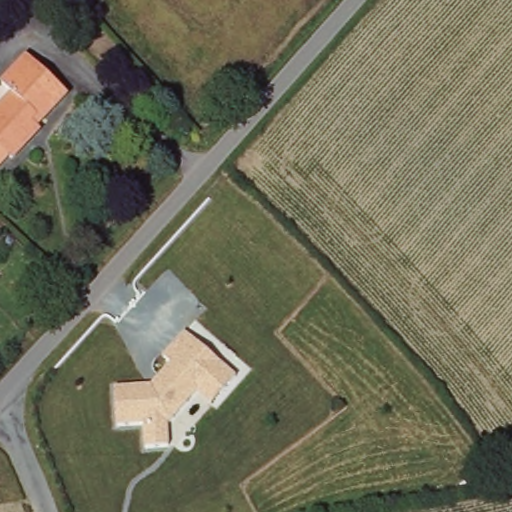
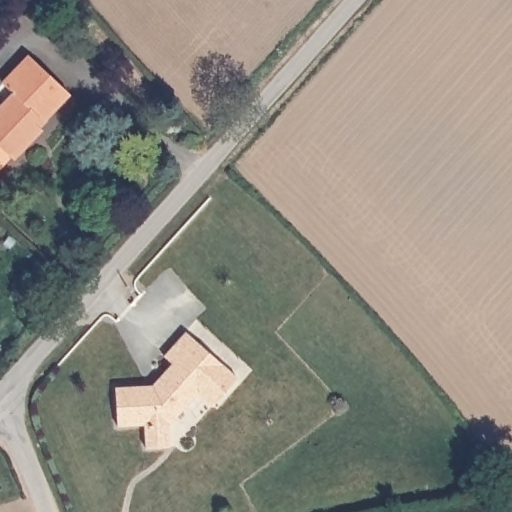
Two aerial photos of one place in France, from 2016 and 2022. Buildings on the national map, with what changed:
unchanged [(39,126),(43,131),(14,162),(9,158),(0,166),(0,110),(15,94),(6,84),(32,57),(72,94),(39,126)]
unchanged [(172,421),(168,422),(169,448),(146,449),(145,423),(118,425),(116,386),(152,384),(174,361),(166,354),(187,329),(240,378),(217,406),(199,391),(172,421)]

